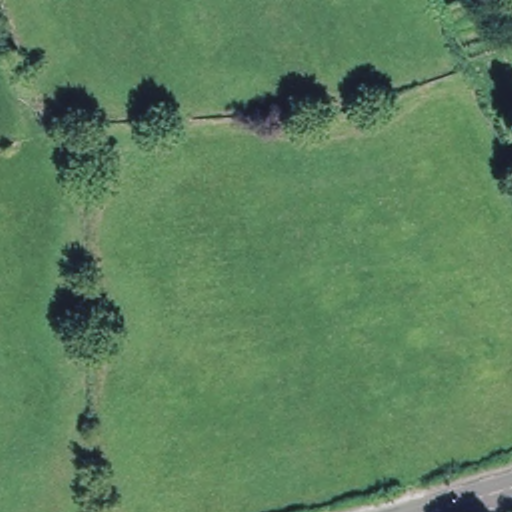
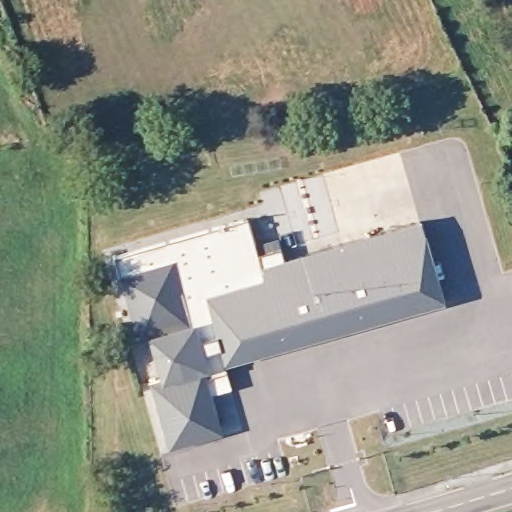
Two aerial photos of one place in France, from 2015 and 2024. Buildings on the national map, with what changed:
new [(253,254),(275,247),(279,260),(376,231),(396,300),(215,352),(221,372),(199,378),(214,427),(160,443),(143,384),(154,380),(133,306),(120,309),(105,257),(242,217),(253,254)]
new [(414,220),(434,288),(396,300),(376,231),(414,220)]

